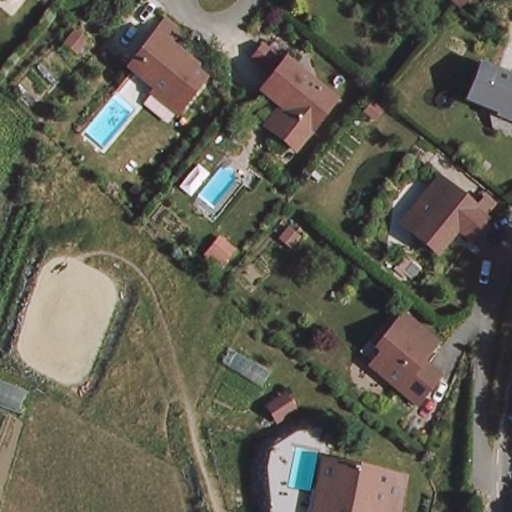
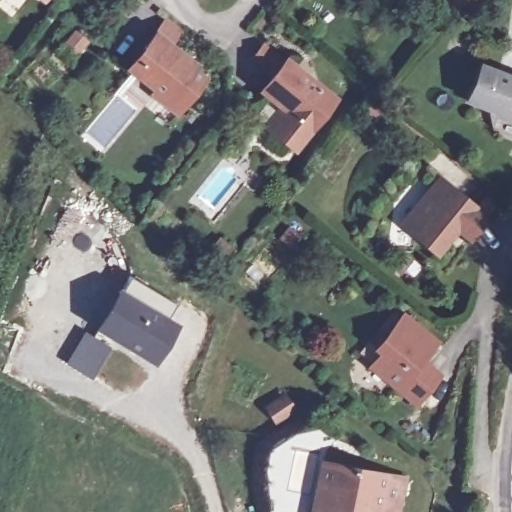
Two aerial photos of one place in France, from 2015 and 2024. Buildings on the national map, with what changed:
unchanged [(464,4),(460,0),(467,0),(464,4)]
unchanged [(153,91),(130,74),(145,54),(142,52),(153,38),(163,24),(178,35),(168,49),(187,63),(195,69),(192,73),(202,82),(182,107),(177,115),(150,95),(153,91)]
unchanged [(279,104),(260,89),(272,73),(250,57),(260,46),(280,62),(282,60),(331,97),(292,148),(270,129),(264,124),(279,104)]
unchanged [(507,106),(490,99),(485,98),(496,68),(500,70),(512,74),(512,122),(502,118),(507,106)]
unchanged [(407,208),(432,179),(467,206),(465,209),(477,219),(464,235),(451,224),(430,250),(407,231),(395,221),(407,208)]
new [(94,330),(120,288),(123,289),(130,276),(177,304),(168,317),(180,324),(155,367),(94,330)]
unchanged [(432,383),(412,407),(365,368),(388,340),(384,335),(398,319),(432,347),(417,364),(435,379),(432,383)]
unchanged [(277,406),(291,425),(277,434),(264,415),(277,406)]
unchanged [(317,456),(398,473),(392,508),(391,512),(305,512),(311,483),(317,456)]

